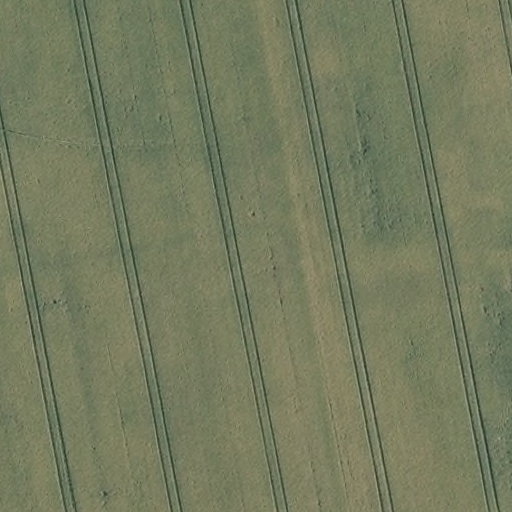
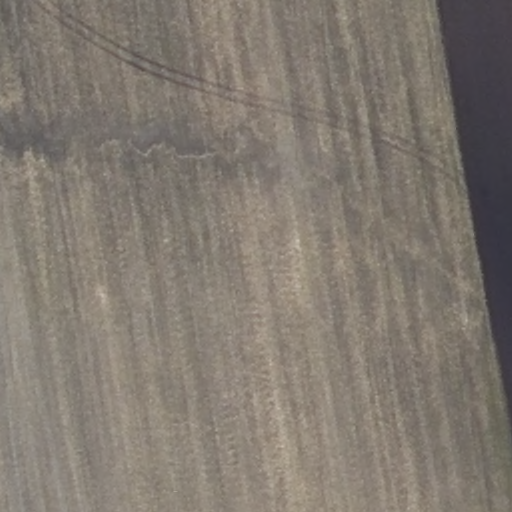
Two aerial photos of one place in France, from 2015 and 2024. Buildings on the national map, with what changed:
[]

